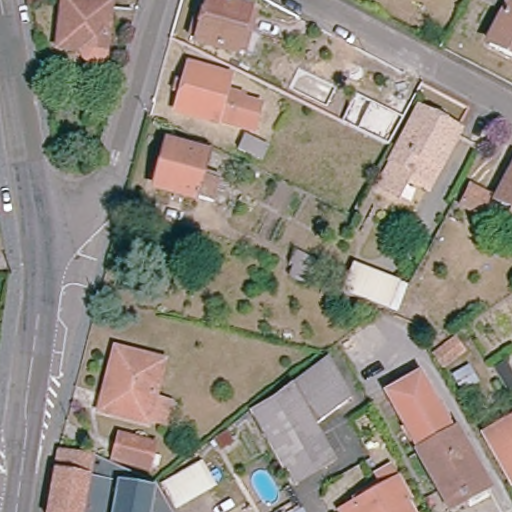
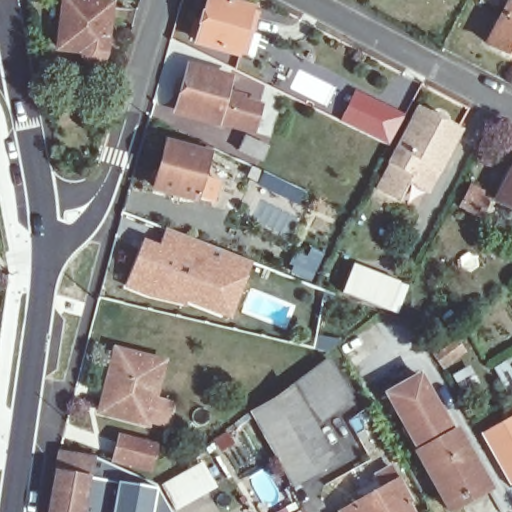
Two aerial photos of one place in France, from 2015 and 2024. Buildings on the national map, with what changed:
unchanged [(68,0),(110,4),(105,57),(100,62),(93,62),(88,59),(85,50),(62,47),(68,0)]
unchanged [(222,0),(256,12),(251,25),(246,24),(237,52),(198,39),(209,0),(222,0)]
unchanged [(482,0),(503,0),(498,8),(482,0)]
unchanged [(512,6),(512,55),(491,45),(511,6),(512,6)]
demolished [(365,51),(353,74),(339,66),(351,44),(365,51)]
unchanged [(171,104),(183,62),(223,73),(220,87),(236,91),(235,95),(254,101),(247,126),(171,104)]
new [(403,114),(388,145),(339,122),(355,90),(403,114)]
unchanged [(416,183),(404,202),(380,190),(420,107),(466,130),(434,191),(416,183)]
demolished [(500,122),(487,147),(473,140),(486,115),(500,122)]
unchanged [(237,132),(260,144),(253,157),(230,147),(237,132)]
unchanged [(168,144),(201,154),(203,150),(209,152),(201,177),(219,181),(213,202),(196,197),(195,199),(155,187),(168,144)]
unchanged [(512,181),(512,206),(502,201),(512,181)]
unchanged [(475,188),(490,197),(481,215),(466,207),(475,188)]
new [(215,310),(187,303),(186,308),(150,301),(129,294),(141,258),(143,250),(160,255),(168,230),(245,261),(241,282),(233,314),(215,310)]
unchanged [(300,266),(317,273),(312,283),(294,277),(300,266)]
unchanged [(344,282),(351,269),(390,285),(410,294),(405,307),(383,298),(344,282)]
unchanged [(160,422),(145,418),(107,411),(117,369),(109,367),(114,350),(159,359),(151,396),(164,400),(160,422)]
unchanged [(328,358),(356,404),(343,413),(317,430),(340,468),(298,495),(253,414),(328,358)]
unchanged [(415,447),(386,396),(419,377),(447,428),(450,427),(488,497),(461,512),(450,512),(414,447),(415,447)]
demolished [(343,413),(365,452),(340,468),(317,430),(343,413)]
unchanged [(512,477),(487,436),(512,422),(512,477)]
unchanged [(120,433),(157,445),(151,464),(114,454),(120,433)]
unchanged [(62,451),(95,454),(159,486),(174,512),(50,512),(62,451)]
unchanged [(383,487),(377,476),(393,467),(412,501),(407,505),(412,512),(342,512),(383,487)]
unchanged [(200,468),(214,491),(179,510),(167,486),(200,468)]

